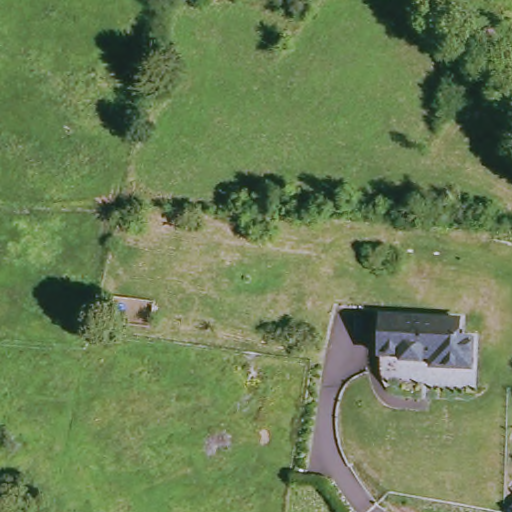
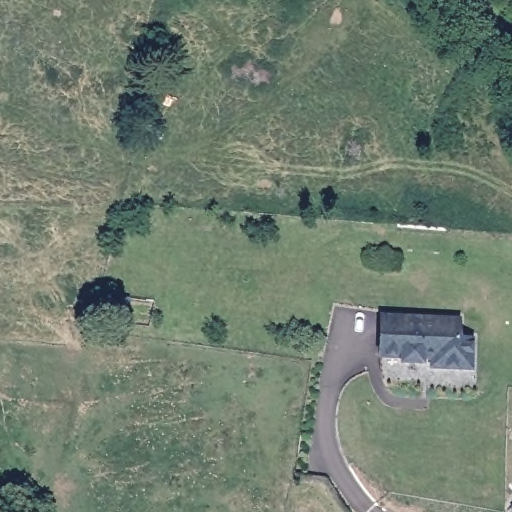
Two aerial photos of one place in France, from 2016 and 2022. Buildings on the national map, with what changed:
unchanged [(407,360),(407,354),(385,355),(385,350),(385,316),(464,316),(463,335),(477,336),(477,364),(437,364),(437,355),(427,354),(427,360),(407,360)]

